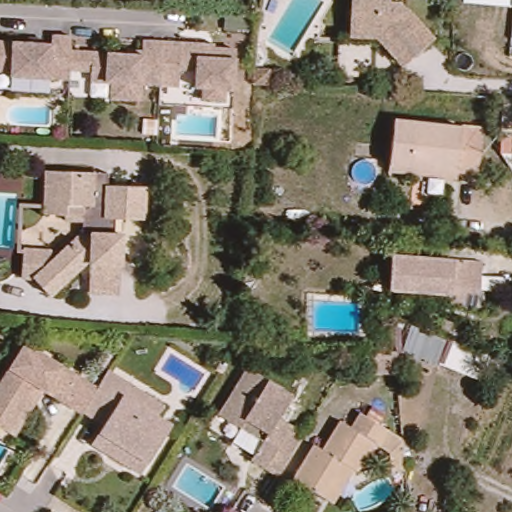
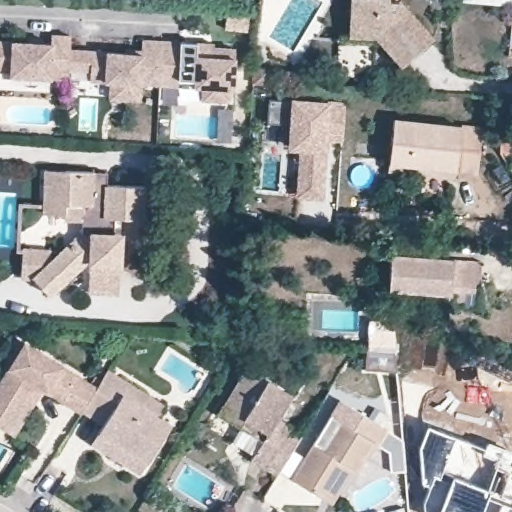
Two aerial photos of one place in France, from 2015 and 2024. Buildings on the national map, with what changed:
unchanged [(379,39),(351,37),(353,0),(390,0),(390,3),(402,4),(437,39),(407,65),(379,39)]
unchanged [(66,82),(8,78),(8,74),(0,73),(0,44),(25,46),(26,42),(40,42),(40,47),(49,47),(50,38),(69,40),(68,53),(66,82)]
unchanged [(137,104),(106,102),(106,101),(107,85),(86,84),(88,55),(122,57),(123,52),(139,54),(140,40),(160,41),(177,42),(175,72),(174,90),(156,88),(138,87),(137,104)]
unchanged [(230,93),(223,92),(222,106),(200,104),(201,91),(191,91),(193,73),(195,47),(195,43),(211,44),(211,48),(234,50),(230,93)]
unchanged [(266,70),(265,86),(251,85),(252,69),(266,70)]
new [(346,104),(343,142),(328,142),(324,201),(295,199),(298,151),(285,151),(288,124),(268,123),(270,100),(295,102),(346,104)]
unchanged [(388,169),(390,159),(396,115),(485,126),(480,170),(456,167),(456,177),(388,169)]
unchanged [(83,262),(45,300),(28,283),(15,282),(16,257),(60,258),(71,245),(80,250),(86,242),(84,237),(77,237),(78,224),(60,223),(60,219),(40,217),(43,185),(44,175),(63,176),(90,177),(97,177),(107,179),(107,188),(145,191),(143,224),(112,221),(110,236),(120,237),(118,266),(91,264),(88,266),(83,262)]
unchanged [(445,306),(446,297),(387,292),(390,257),(480,265),(475,307),(445,306)]
unchanged [(410,315),(493,347),(482,386),(402,350),(410,315)]
new [(365,367),(366,349),(396,351),(395,370),(365,367)]
unchanged [(7,437),(0,432),(0,389),(10,374),(20,381),(36,357),(97,394),(83,417),(81,418),(43,396),(14,441),(7,437)]
unchanged [(261,445),(241,432),(216,417),(248,370),(291,397),(276,421),(288,428),(303,437),(277,481),(261,472),(250,463),(256,453),(261,445)]
unchanged [(96,439),(102,430),(83,417),(97,394),(108,376),(147,400),(162,411),(155,422),(169,430),(139,478),(123,468),(90,447),(96,439)]
unchanged [(323,503),(293,485),(315,448),(323,452),(340,423),(352,430),(361,416),(387,431),(377,448),(373,445),(356,474),(334,510),(323,503)]
new [(429,486),(421,483),(418,448),(427,425),(512,458),(512,512),(425,512),(423,512),(421,505),(429,486)]

